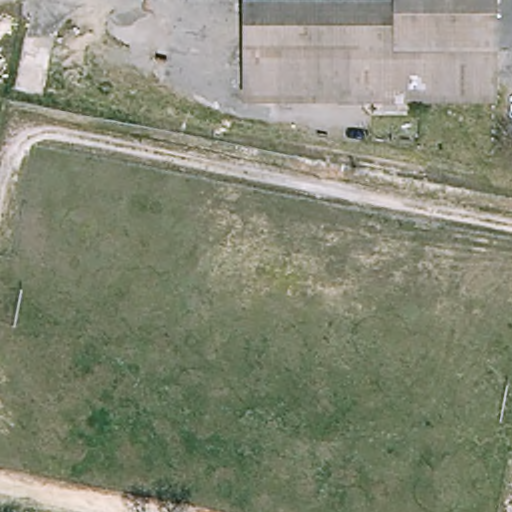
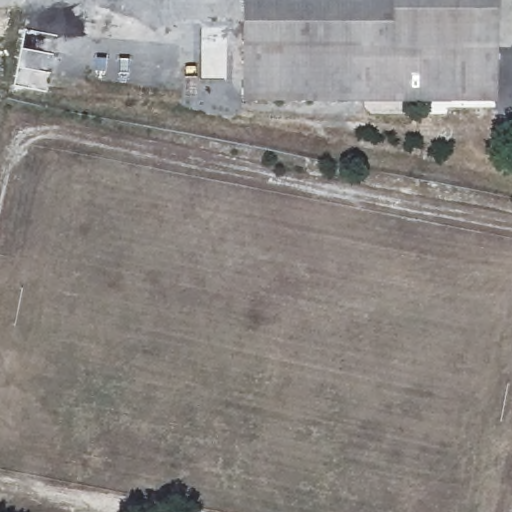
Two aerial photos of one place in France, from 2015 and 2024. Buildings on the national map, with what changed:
unchanged [(389,0),(488,0),(491,97),(242,104),(242,6),(389,2),(389,0)]

